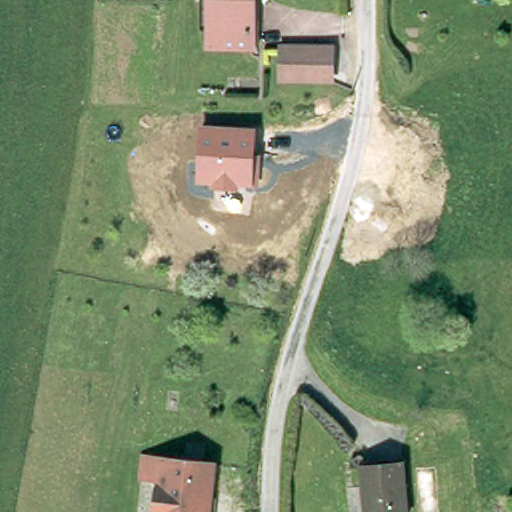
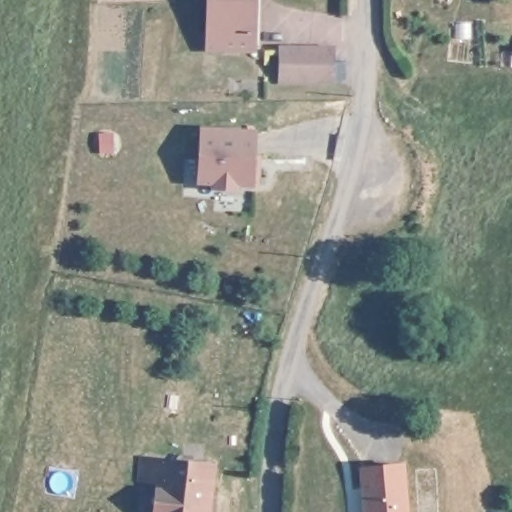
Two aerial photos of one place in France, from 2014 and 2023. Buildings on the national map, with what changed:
unchanged [(249,45),(205,43),(207,0),(249,0),(249,45)]
unchanged [(277,46),(328,47),(327,80),(276,81),(277,46)]
unchanged [(255,188),(197,185),(200,127),(257,129),(255,188)]
unchanged [(152,512),(157,478),(134,474),(137,451),(215,464),(206,512),(152,512)]
unchanged [(361,512),(357,469),(399,465),(402,512),(361,512)]

